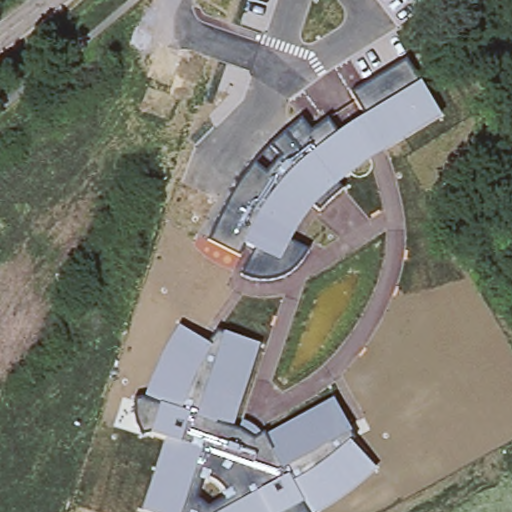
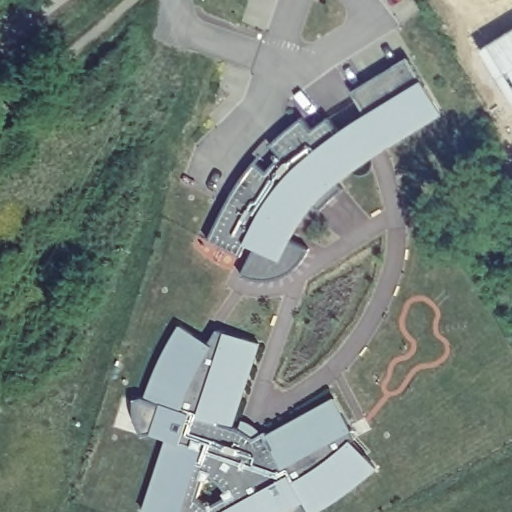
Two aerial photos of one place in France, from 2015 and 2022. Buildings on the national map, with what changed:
new [(512,31),(512,108),(478,52),(512,31)]
unchanged [(231,198),(255,162),(265,172),(281,155),(272,145),(304,118),(312,131),(329,118),(337,132),(366,114),(354,92),(409,60),(442,114),(368,159),(339,183),(343,187),(319,210),(313,206),(299,225),(291,241),(307,249),(293,268),(277,275),(261,277),(242,274),(255,248),(244,242),(238,253),(211,239),(231,198)]
unchanged [(151,432),(141,434),(136,418),(135,397),(144,397),(164,354),(180,326),(211,344),(220,330),(260,344),(237,420),(254,427),(264,435),(334,400),(352,431),(348,434),(351,441),(375,468),(339,497),(320,510),(316,512),(150,512),(144,509),(168,437),(151,432)]

